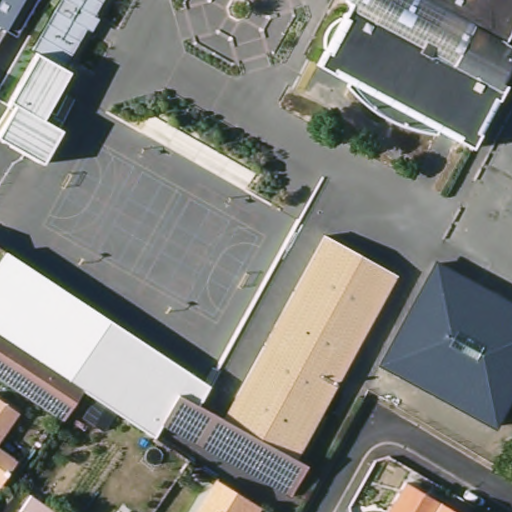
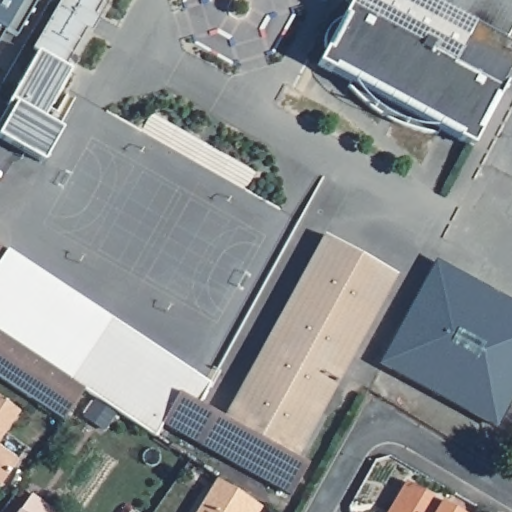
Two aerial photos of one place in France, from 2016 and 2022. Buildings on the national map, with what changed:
unchanged [(4,27),(0,35),(0,0),(35,0),(15,34),(4,27)]
unchanged [(12,106),(6,104),(34,52),(31,50),(59,0),(100,0),(92,15),(97,19),(89,30),(85,28),(64,67),(69,70),(42,119),(59,129),(41,164),(0,140),(0,129),(12,106)]
unchanged [(512,44),(512,64),(502,82),(504,84),(469,147),(438,129),(435,134),(418,130),(402,125),(387,118),(372,109),(359,98),(347,85),(349,81),(317,64),(326,47),(323,45),(323,39),(325,32),(328,26),(332,21),(337,17),(341,19),(349,2),(345,0),(512,0),(512,26),(504,40),(512,44)]
unchanged [(118,355),(175,391),(223,417),(324,235),(396,276),(296,459),(307,466),(289,495),(162,423),(155,436),(118,412),(89,393),(118,355)]
unchanged [(6,251),(0,260),(0,247),(6,251)]
unchanged [(512,309),(512,406),(494,437),(377,370),(436,266),(512,309)]
unchanged [(118,355),(89,393),(83,390),(0,334),(0,276),(118,355)]
unchanged [(83,390),(62,421),(0,379),(0,334),(83,390)]
unchanged [(23,411),(0,444),(0,394),(23,411)]
unchanged [(21,459),(3,484),(0,482),(0,444),(21,459)]
unchanged [(396,496),(394,495),(405,477),(442,499),(464,512),(387,512),(396,496)]
unchanged [(217,481),(259,507),(257,512),(198,512),(217,481)]
unchanged [(31,495),(57,512),(19,512),(31,495)]

